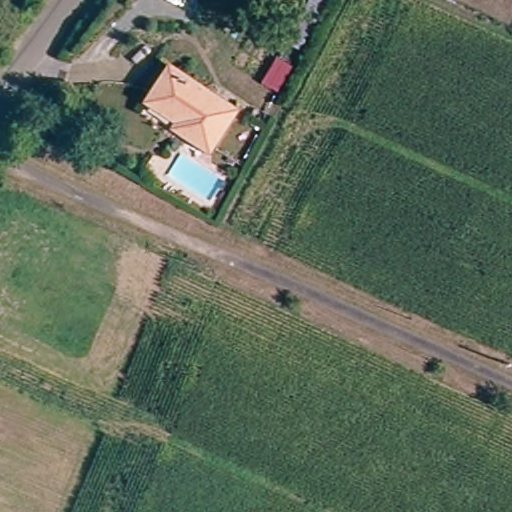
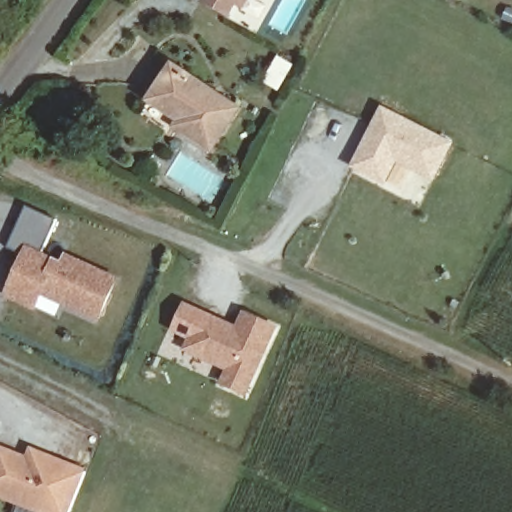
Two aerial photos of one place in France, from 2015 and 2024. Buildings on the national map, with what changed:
new [(240,9),(232,5),(225,19),(201,6),(204,0),(245,0),(240,9)]
unchanged [(184,130),(189,124),(158,104),(182,68),(215,89),(244,108),(240,114),(216,151),(184,130)]
new [(455,144),(435,184),(397,165),(386,187),(350,170),(381,107),(455,144)]
new [(27,253),(10,245),(30,203),(60,217),(44,252),(65,262),(69,254),(118,277),(99,315),(43,289),(36,305),(9,292),(17,274),(20,268),(27,253)]
new [(237,326),(241,313),(279,327),(248,397),(218,385),(224,371),(182,353),(187,339),(172,332),(184,304),(237,326)]
new [(28,458),(31,448),(88,471),(72,512),(33,512),(0,499),(0,447),(28,458)]

